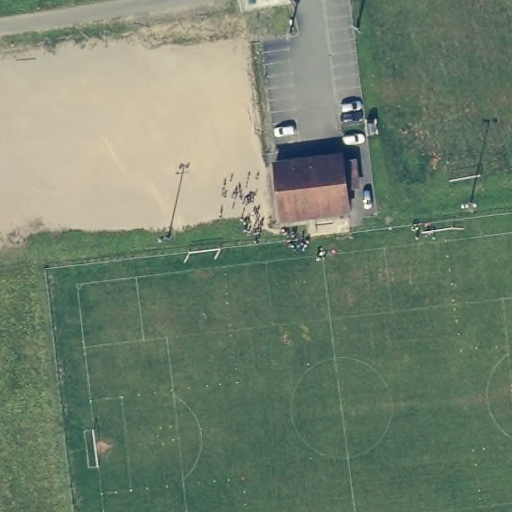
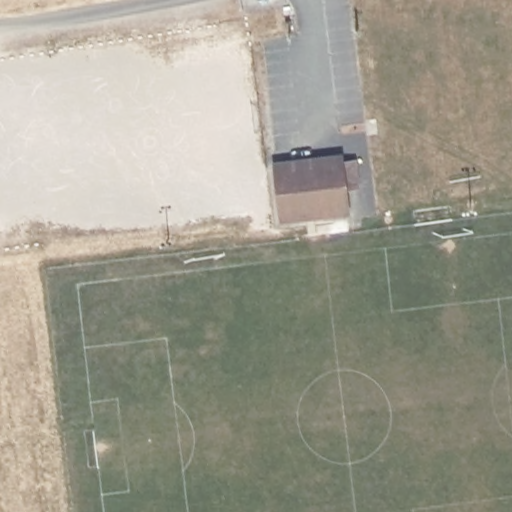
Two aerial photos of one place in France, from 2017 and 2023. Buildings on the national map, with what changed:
unchanged [(351,225),(279,232),(273,181),(346,175),(351,225)]

